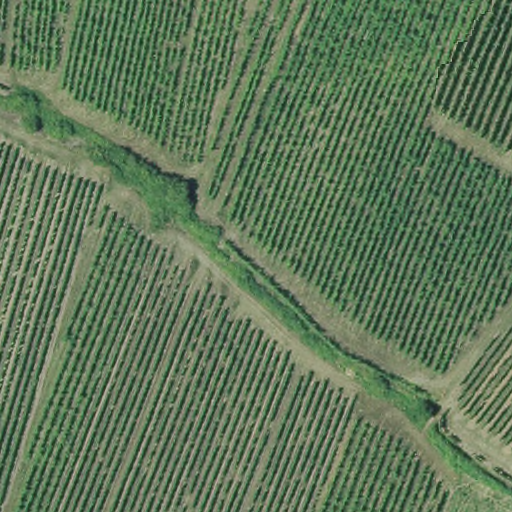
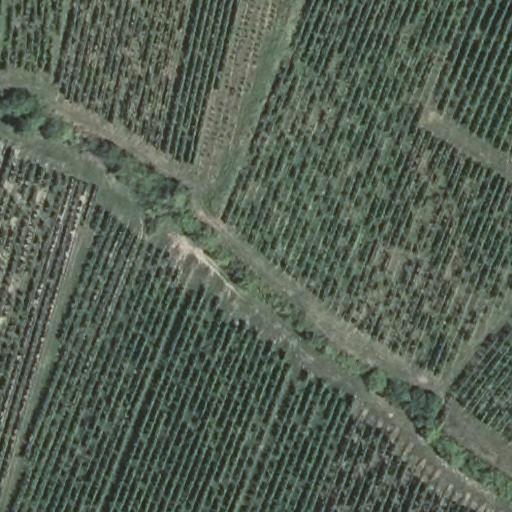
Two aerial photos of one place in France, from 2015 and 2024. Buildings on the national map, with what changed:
[]

